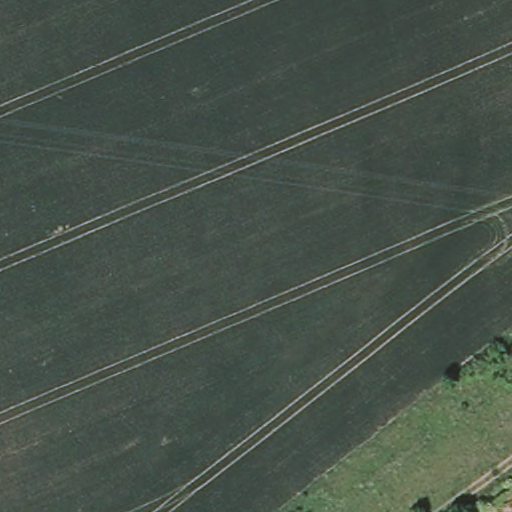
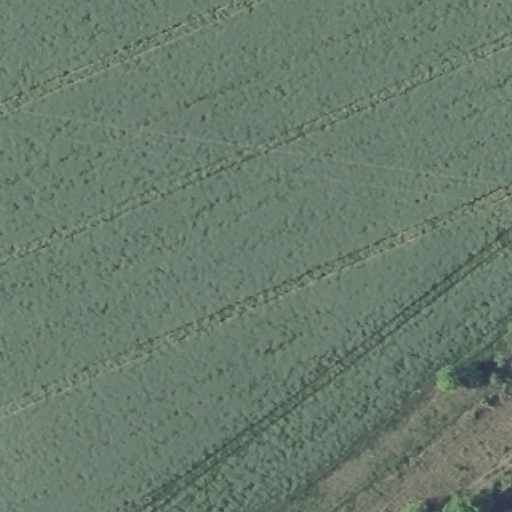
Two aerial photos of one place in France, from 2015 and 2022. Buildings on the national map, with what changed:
[]

